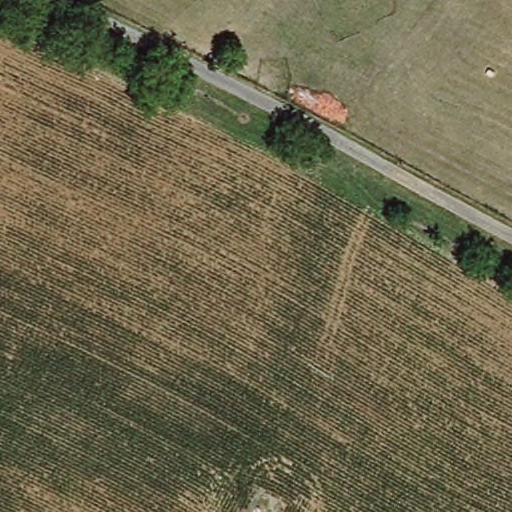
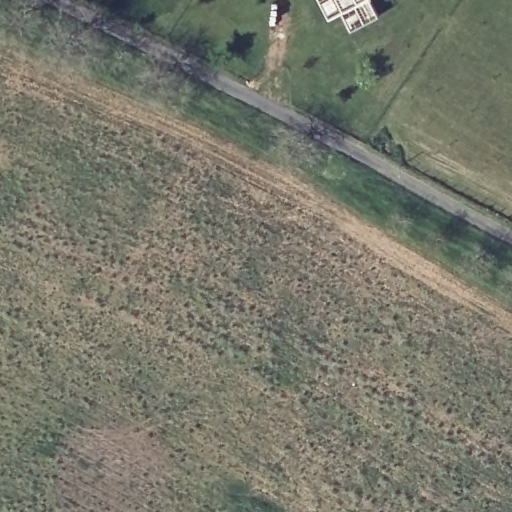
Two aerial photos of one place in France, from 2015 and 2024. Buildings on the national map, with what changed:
new [(378,14),(349,28),(341,11),(327,18),(318,0),(372,0),(378,14)]

